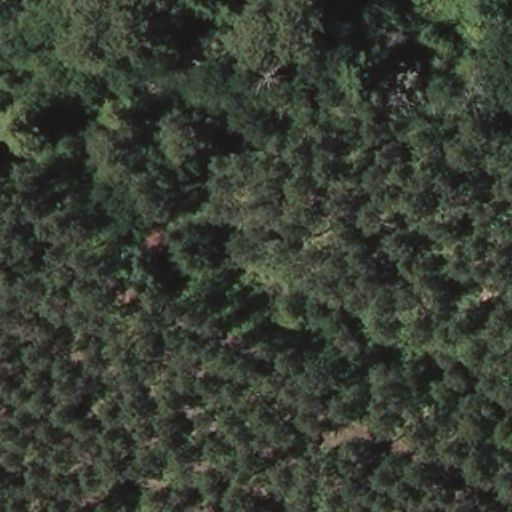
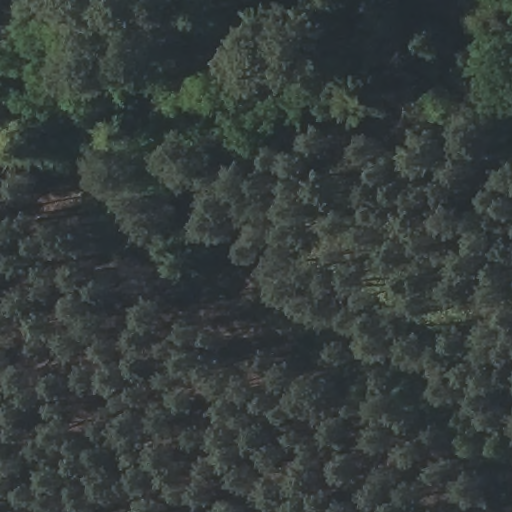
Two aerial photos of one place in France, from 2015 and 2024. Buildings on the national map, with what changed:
unchanged [(468,10),(486,13),(489,0),(512,0),(512,26),(508,26),(494,83),(452,72),(468,10)]

